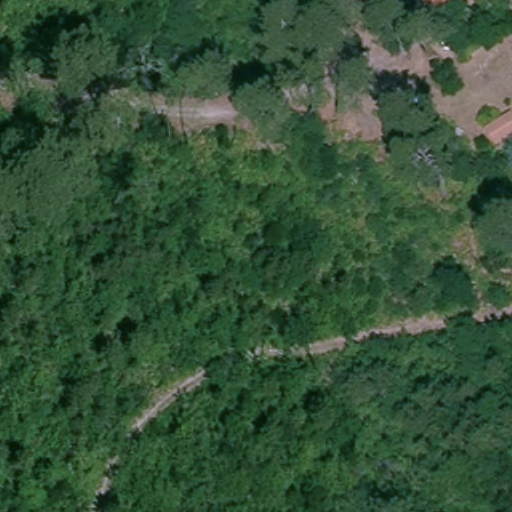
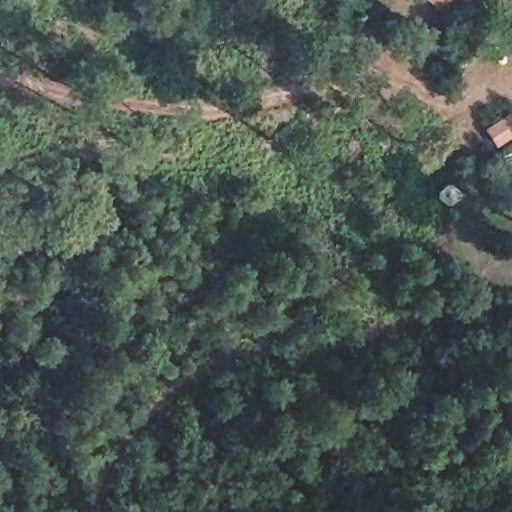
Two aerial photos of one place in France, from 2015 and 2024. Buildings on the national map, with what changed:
unchanged [(431,0),(455,0),(443,11),(431,0)]
unchanged [(500,126),(512,116),(512,137),(510,139),(500,126)]

